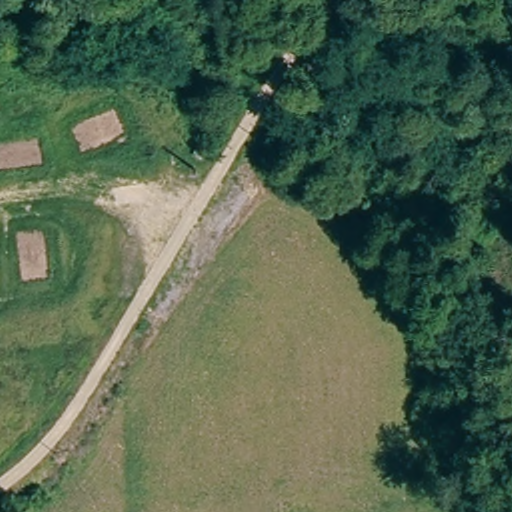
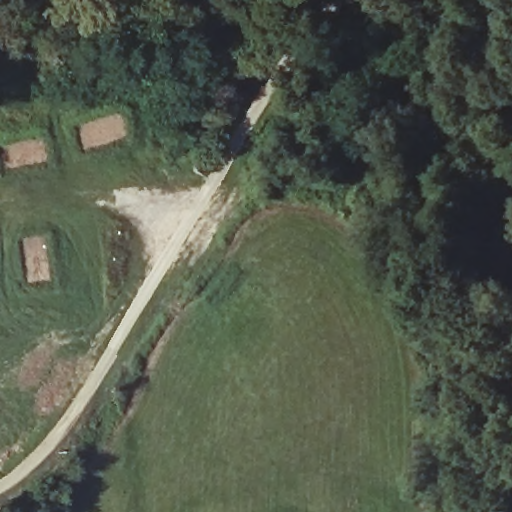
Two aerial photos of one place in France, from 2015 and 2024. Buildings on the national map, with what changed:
[]

